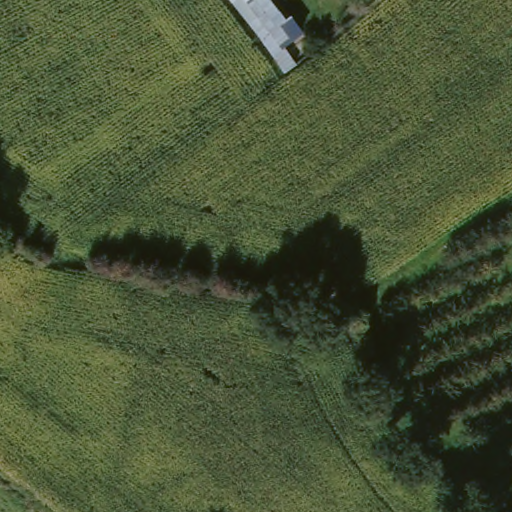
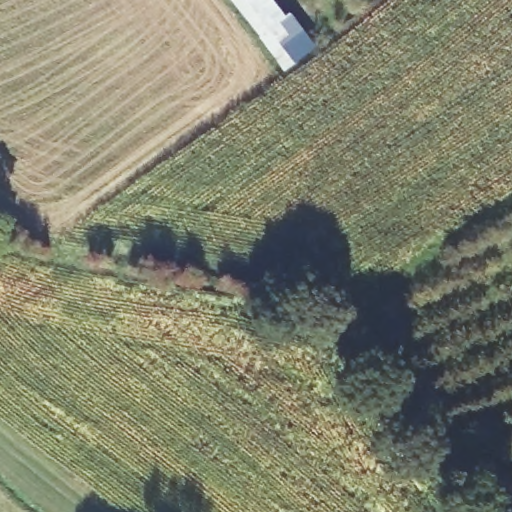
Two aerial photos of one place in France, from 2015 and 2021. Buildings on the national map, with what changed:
unchanged [(309,57),(283,76),(228,0),(269,0),(309,57)]

